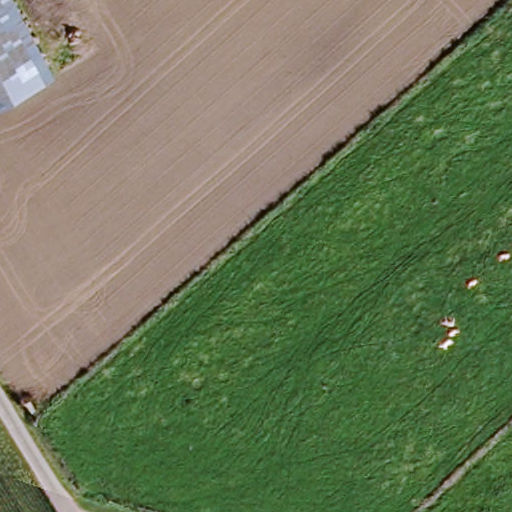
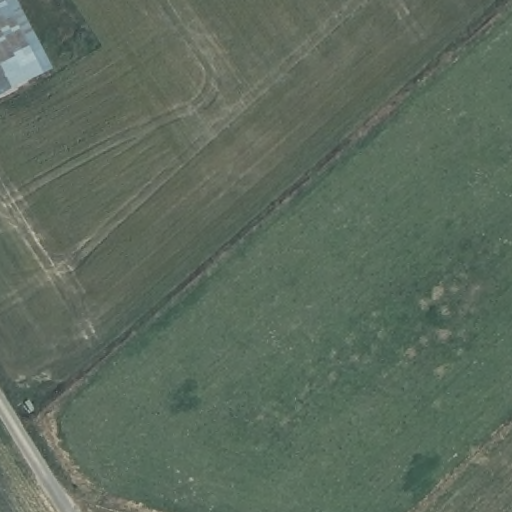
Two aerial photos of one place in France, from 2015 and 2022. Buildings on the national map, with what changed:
unchanged [(55,68),(0,100),(0,0),(21,0),(55,68)]

